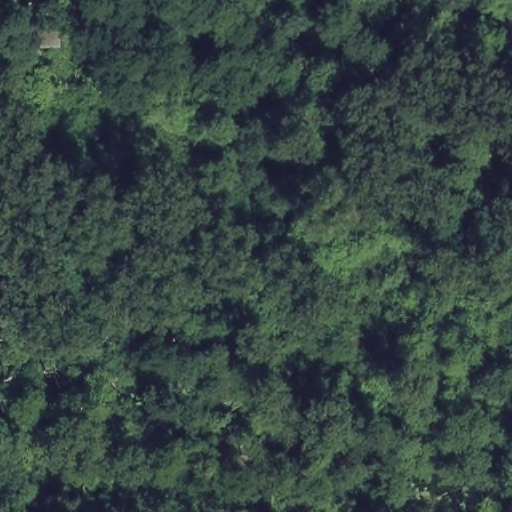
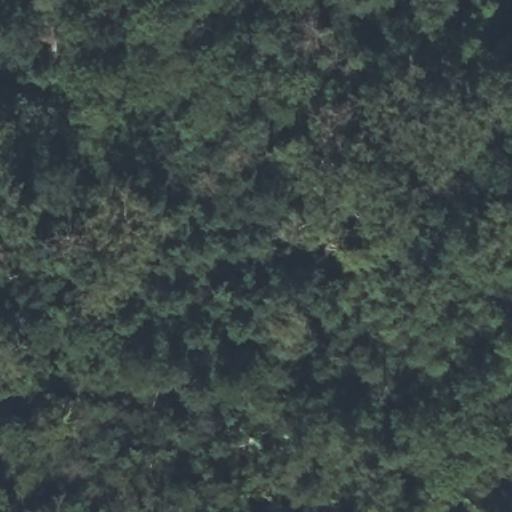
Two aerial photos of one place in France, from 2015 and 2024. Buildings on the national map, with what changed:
unchanged [(60,55),(11,53),(9,20),(59,24),(60,55)]

